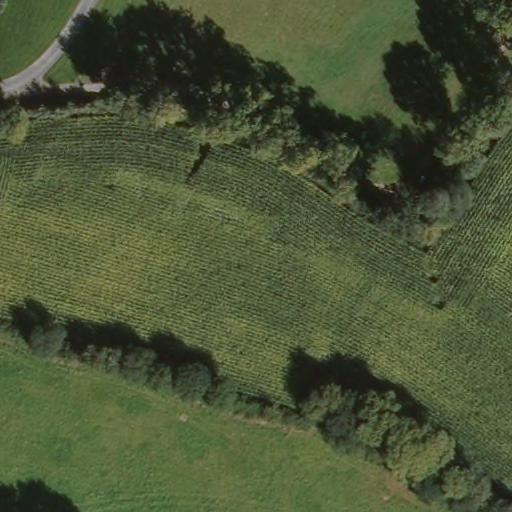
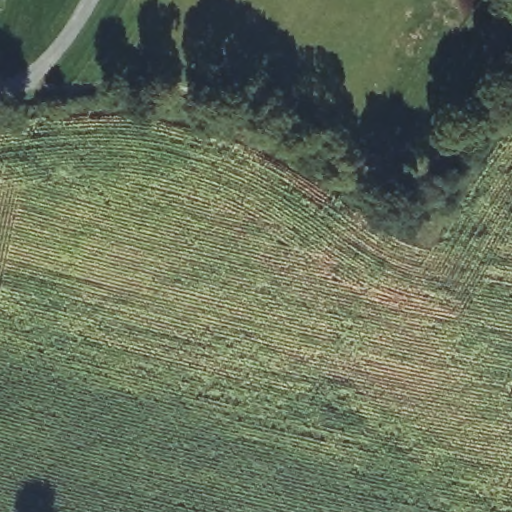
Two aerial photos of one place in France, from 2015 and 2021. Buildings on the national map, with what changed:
[]

